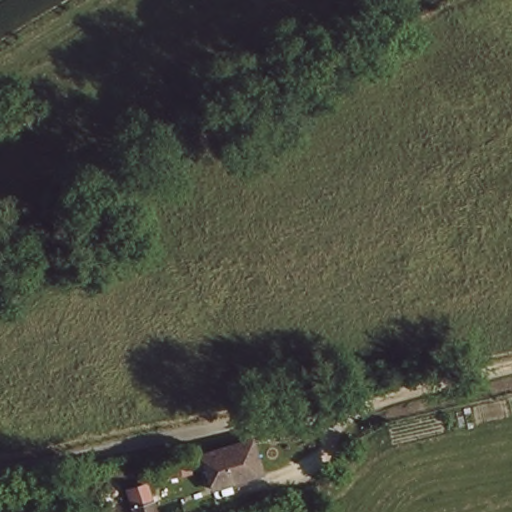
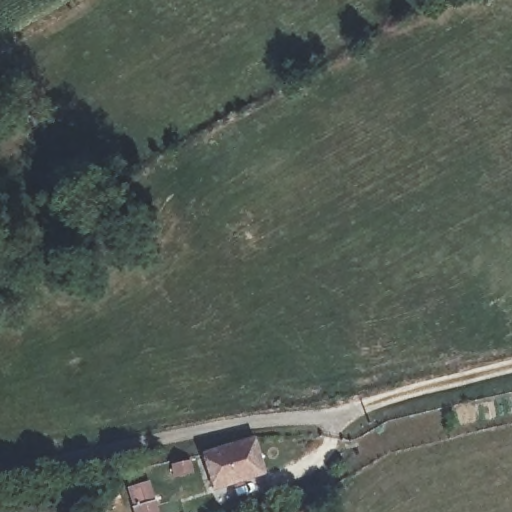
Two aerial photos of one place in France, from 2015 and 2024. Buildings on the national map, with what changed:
unchanged [(252,446),(261,474),(212,488),(204,461),(252,446)]
unchanged [(169,512),(157,512),(169,509),(169,512)]

